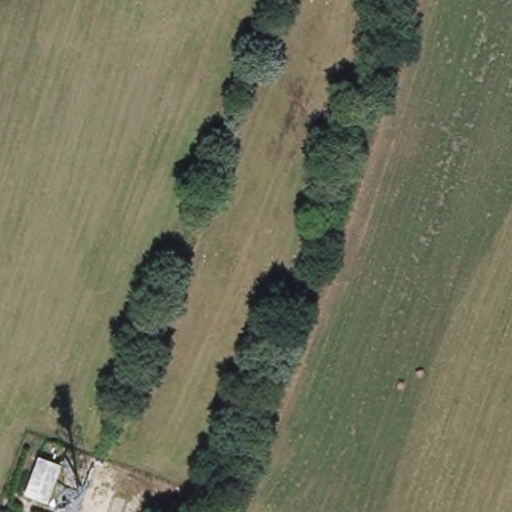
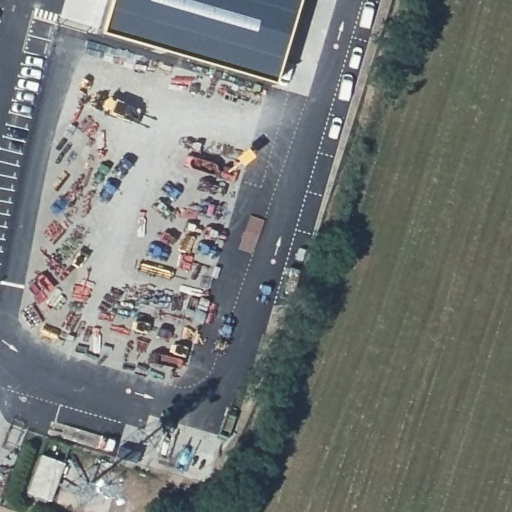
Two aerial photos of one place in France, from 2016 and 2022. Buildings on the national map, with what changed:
new [(107,0),(296,0),(271,86),(97,35),(107,0)]
unchanged [(40,450),(49,453),(62,457),(50,495),(35,490),(26,487),(40,450)]

